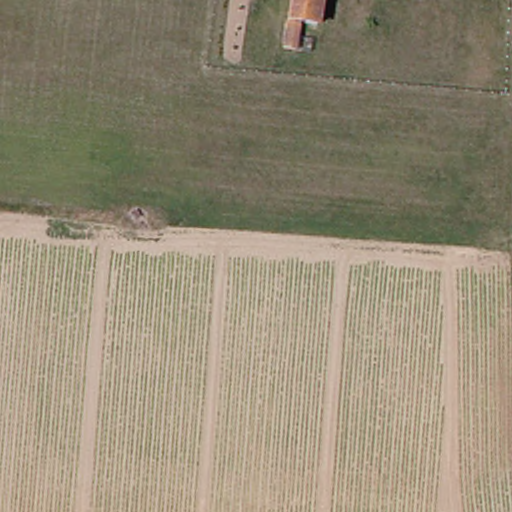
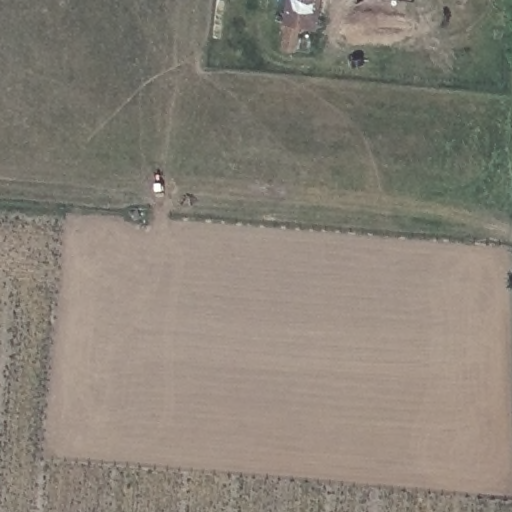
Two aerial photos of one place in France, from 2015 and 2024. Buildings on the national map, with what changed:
unchanged [(325,0),(322,21),(293,17),(296,0),(325,0)]
unchanged [(291,26),(302,27),(298,41),(289,37),(291,26)]

